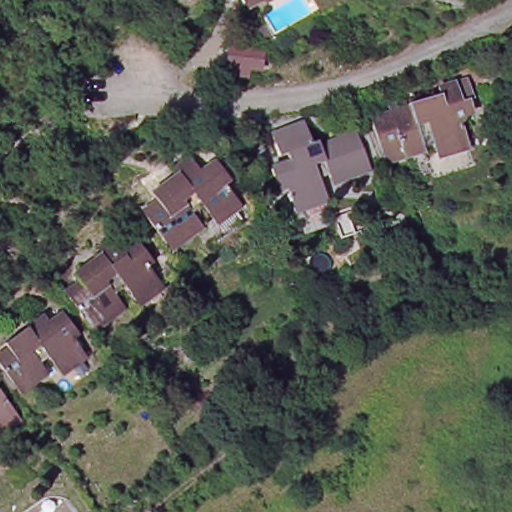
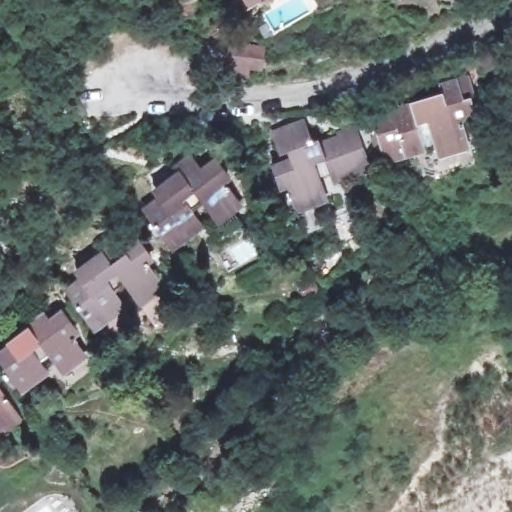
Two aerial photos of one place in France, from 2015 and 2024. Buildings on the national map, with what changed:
unchanged [(281,35),(273,40),(267,30),(276,25),(281,35)]
unchanged [(439,140),(437,131),(433,117),(424,120),(425,126),(422,132),(407,136),(406,133),(384,139),(380,140),(372,113),(378,111),(374,100),(393,95),(391,86),(398,85),(401,95),(414,91),(416,95),(426,92),(423,84),(445,78),(442,67),(472,60),(477,79),(465,82),(469,96),(464,105),(464,110),(469,123),(471,132),(439,140)]
unchanged [(298,214),(295,207),(289,189),(281,191),(273,168),(291,162),(288,153),(280,156),(274,138),(308,126),(314,143),(319,141),(322,148),(339,142),(341,138),(358,132),(370,167),(355,172),(356,176),(339,182),(332,179),(330,173),(321,176),(328,195),(330,203),(298,214)]
unchanged [(143,215),(148,212),(145,206),(159,196),(165,192),(159,184),(168,178),(173,178),(177,183),(186,176),(181,168),(176,161),(191,150),(196,156),(204,167),(219,157),(227,169),(227,180),(238,196),(244,204),(220,222),(214,214),(201,196),(191,204),(203,220),(186,233),(184,231),(170,241),(163,232),(158,235),(143,215)]
unchanged [(141,302),(136,293),(123,276),(113,283),(121,295),(119,305),(107,314),(105,311),(90,322),(65,288),(81,276),(87,272),(81,265),(91,258),(98,263),(108,256),(103,248),(98,242),(113,230),(118,237),(126,249),(141,239),(151,251),(150,261),(154,267),(166,258),(176,270),(163,280),(166,284),(141,302)]
unchanged [(18,383),(13,386),(0,369),(5,365),(0,358),(0,353),(11,345),(6,338),(28,321),(30,324),(48,311),(53,319),(65,310),(74,321),(80,329),(74,333),(84,347),(89,354),(65,371),(60,365),(51,352),(42,358),(43,360),(50,370),(23,390),(18,383)]
unchanged [(18,410),(23,417),(7,429),(1,421),(0,419),(0,385),(18,410)]

